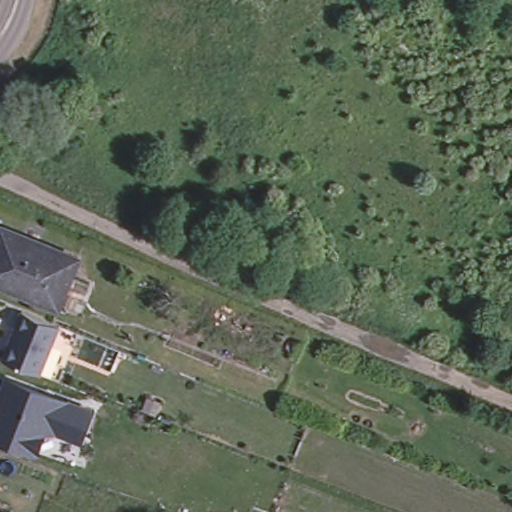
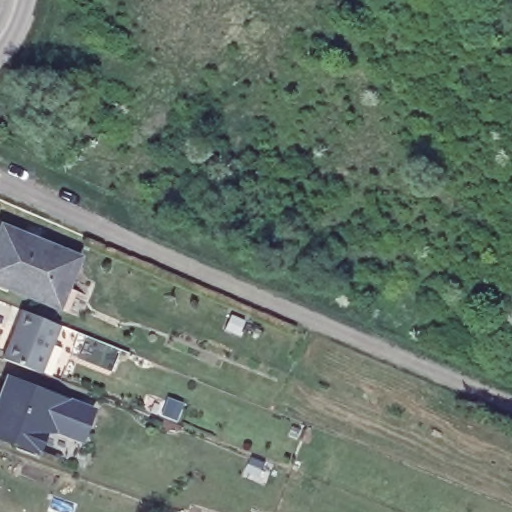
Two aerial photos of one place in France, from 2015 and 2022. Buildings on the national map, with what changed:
unchanged [(74,256),(67,273),(0,245),(0,225),(74,256)]
unchanged [(49,303),(0,283),(0,245),(67,273),(62,285),(53,306),(49,303)]
unchanged [(19,309),(57,324),(56,325),(37,372),(0,357),(0,356),(19,309)]
unchanged [(85,437),(70,431),(56,425),(42,431),(35,447),(0,434),(0,401),(4,391),(10,377),(80,406),(95,412),(85,437)]

